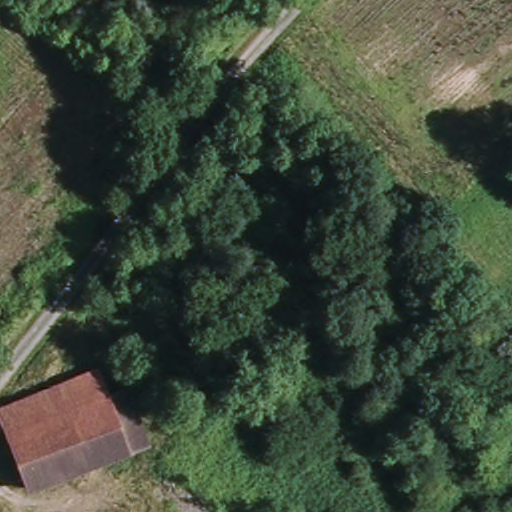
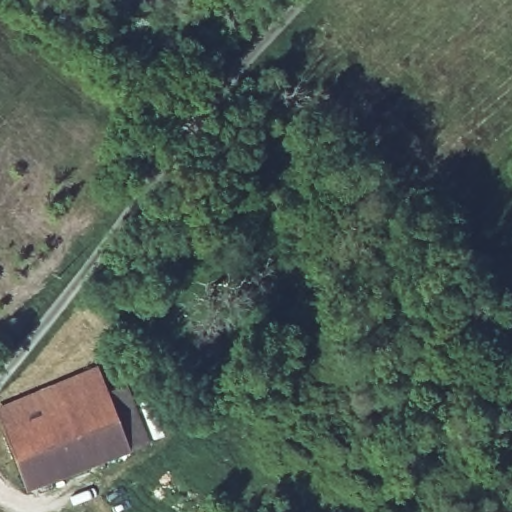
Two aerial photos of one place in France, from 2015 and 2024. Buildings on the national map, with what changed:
unchanged [(22,487),(0,432),(0,404),(89,369),(99,394),(119,386),(141,442),(22,487)]

